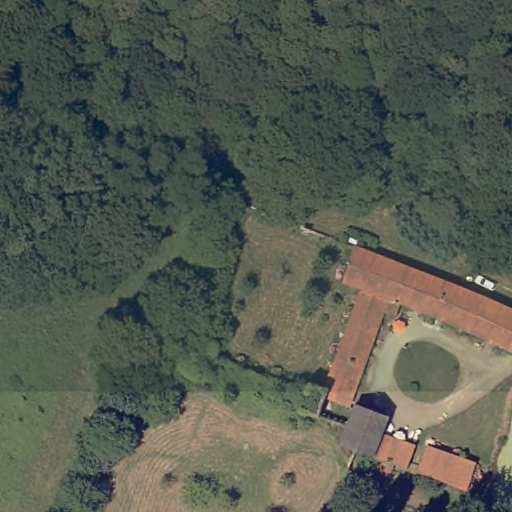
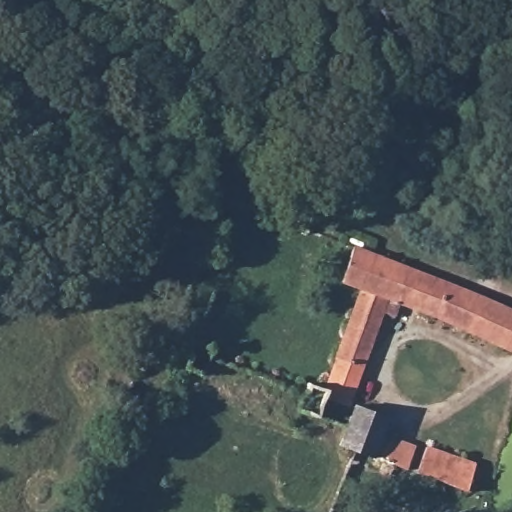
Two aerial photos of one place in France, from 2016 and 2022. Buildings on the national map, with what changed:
unchanged [(387,299),(347,403),(321,393),(359,288),(343,282),(352,245),(512,309),(512,350),(409,306),(387,299)]
unchanged [(341,445),(356,412),(475,459),(466,491),(341,445)]

